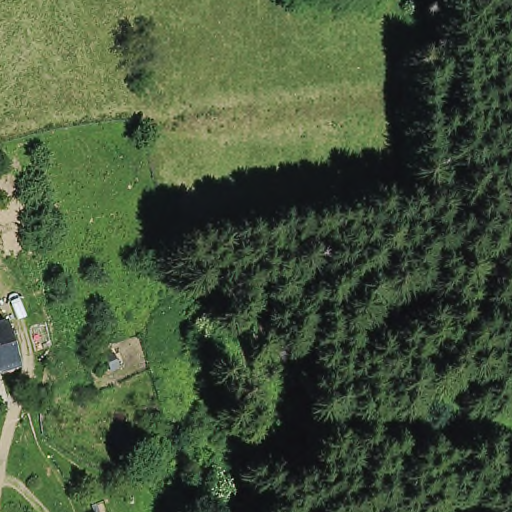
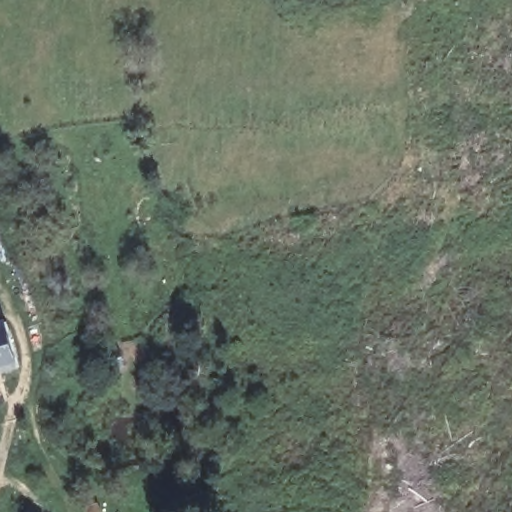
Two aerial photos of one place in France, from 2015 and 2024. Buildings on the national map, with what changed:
unchanged [(7,327),(20,375),(0,379),(0,329),(7,327)]

